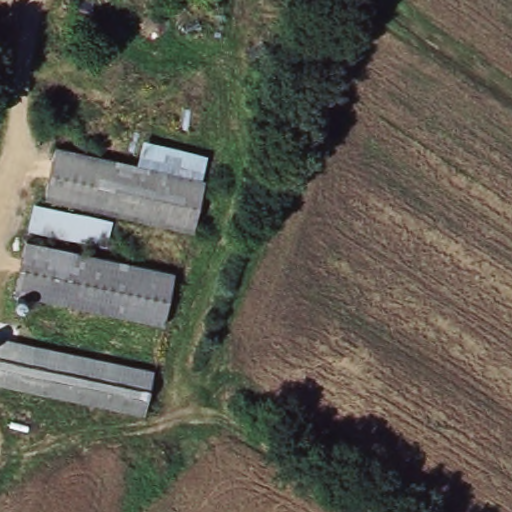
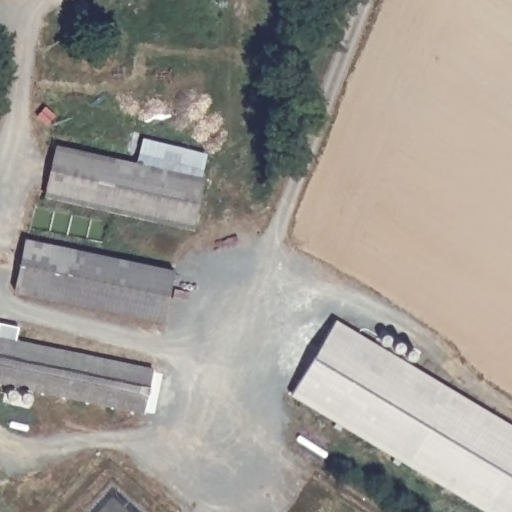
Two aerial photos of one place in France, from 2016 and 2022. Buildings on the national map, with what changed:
unchanged [(0,88),(0,74),(3,75),(0,88)]
unchanged [(139,162),(144,141),(204,155),(199,175),(139,162)]
unchanged [(45,195),(56,146),(204,179),(193,228),(45,195)]
unchanged [(28,234),(35,210),(110,229),(104,254),(28,234)]
unchanged [(15,295),(25,245),(174,276),(163,327),(15,295)]
new [(336,318),(512,424),(512,512),(486,512),(291,395),(336,318)]
unchanged [(0,338),(153,370),(144,412),(0,382),(0,338)]

